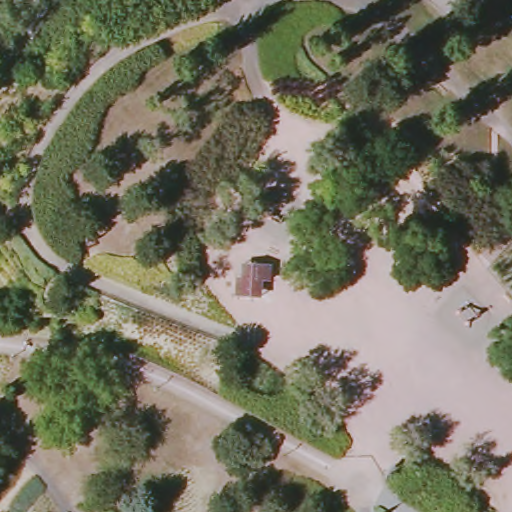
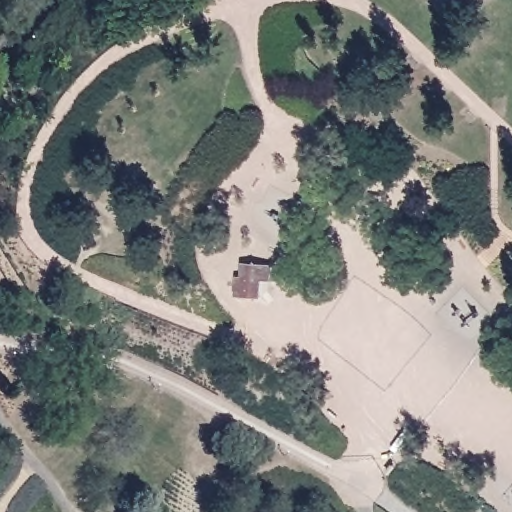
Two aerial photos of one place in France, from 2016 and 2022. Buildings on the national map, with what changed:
unchanged [(273,264),(273,284),(267,285),(261,289),(262,299),(240,299),(239,279),(247,279),(254,269),(255,264),(273,264)]

